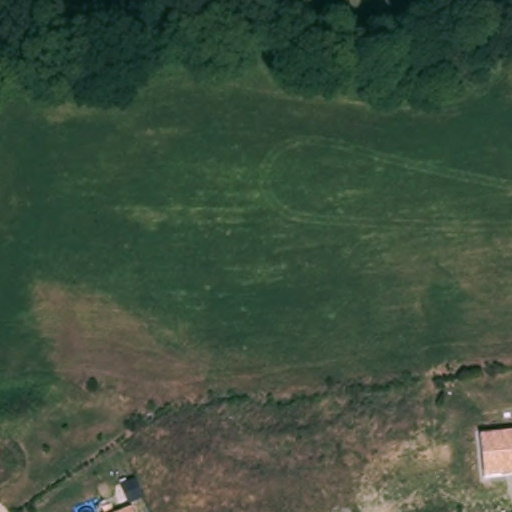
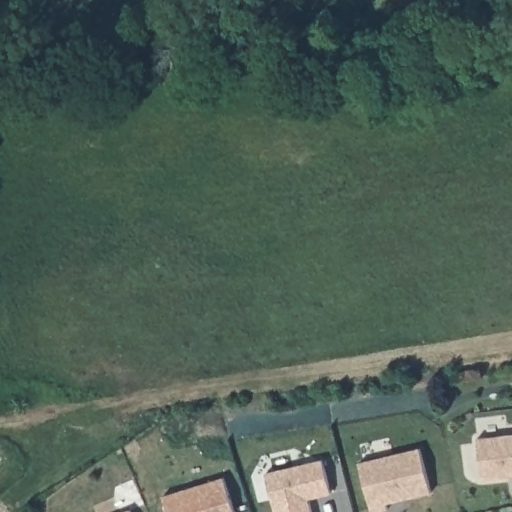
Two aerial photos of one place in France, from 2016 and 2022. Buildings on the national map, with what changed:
unchanged [(480,437),(512,435),(512,474),(484,478),(480,437)]
new [(386,509),(375,512),(371,512),(358,462),(419,447),(430,492),(412,496),(400,499),(385,503),(386,509)]
new [(233,512),(167,512),(162,496),(222,477),(233,512)]
unchanged [(133,512),(120,512),(131,507),(133,512)]

